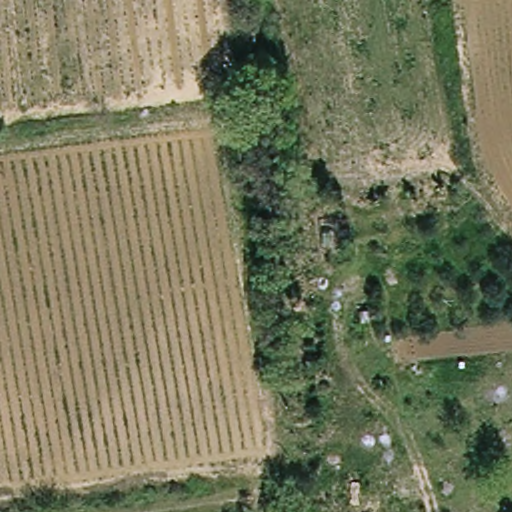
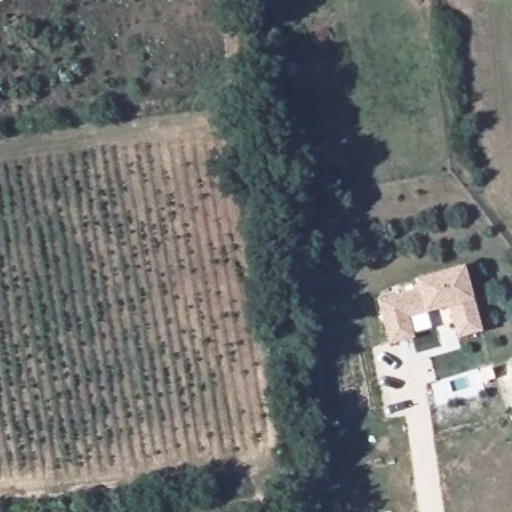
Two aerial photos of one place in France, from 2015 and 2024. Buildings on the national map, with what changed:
new [(417,289),(414,280),(461,268),(477,332),(454,337),(447,306),(404,317),(409,337),(386,342),(376,299),(417,289)]
new [(512,361),(512,368),(509,364),(512,361)]

